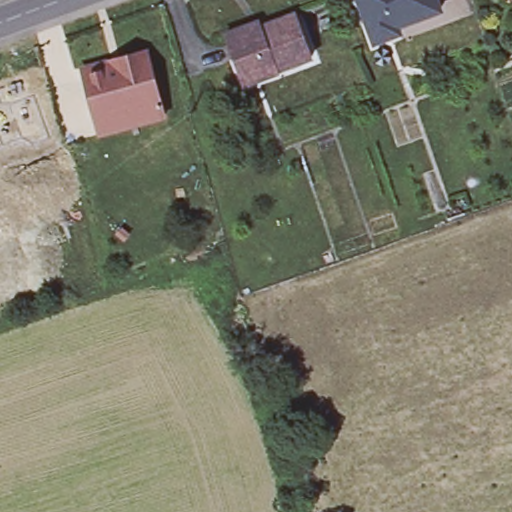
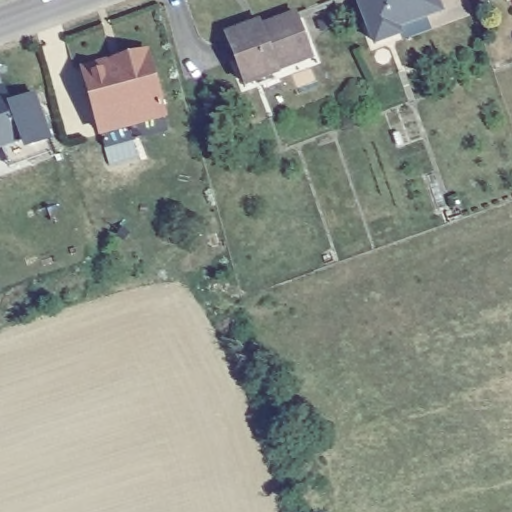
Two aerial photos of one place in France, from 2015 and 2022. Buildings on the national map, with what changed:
unchanged [(395,25),(398,32),(372,41),(357,0),(436,0),(439,8),(395,25)]
unchanged [(254,22),(260,26),(291,13),(310,61),(279,73),(279,77),(247,90),(226,32),(254,22)]
unchanged [(167,112),(102,132),(85,73),(84,66),(126,54),(148,47),(167,112)]
new [(37,92),(54,141),(23,152),(21,144),(3,150),(0,151),(0,87),(5,86),(9,100),(37,92)]

